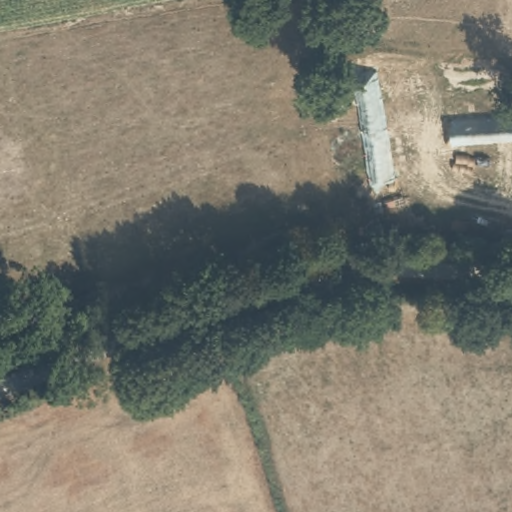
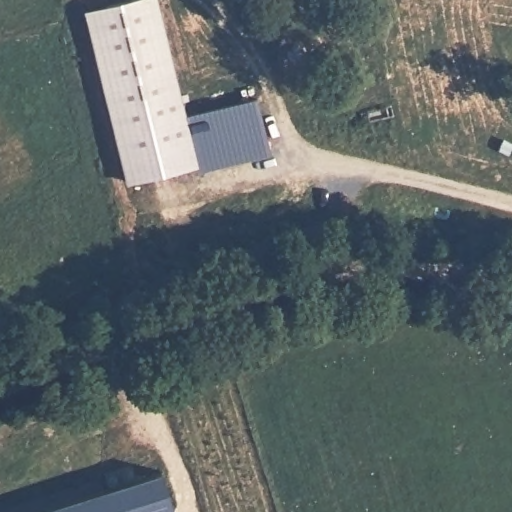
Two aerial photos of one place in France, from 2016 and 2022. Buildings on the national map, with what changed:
new [(156,0),(185,115),(258,98),(269,146),(129,182),(87,11),(129,0),(156,0)]
unchanged [(161,470),(176,512),(32,512),(161,470)]

